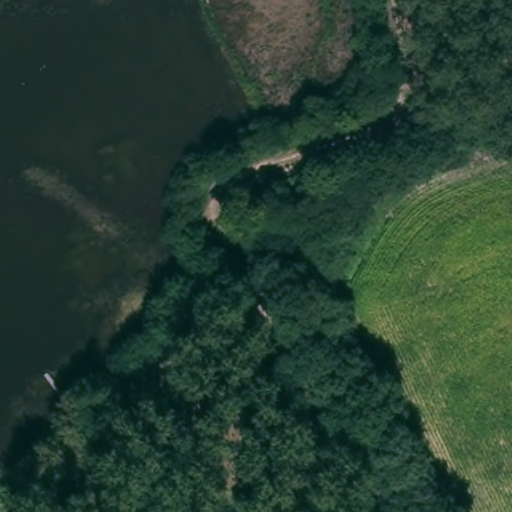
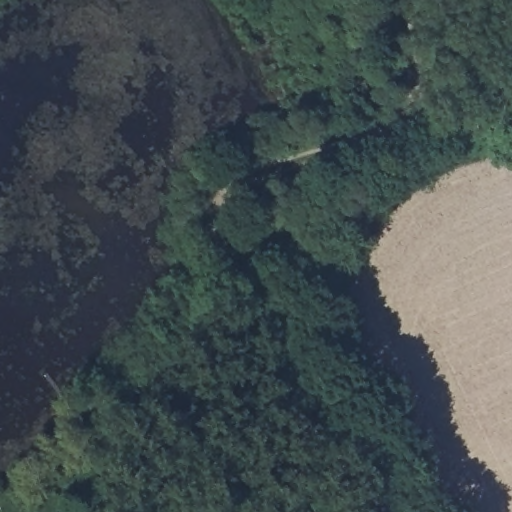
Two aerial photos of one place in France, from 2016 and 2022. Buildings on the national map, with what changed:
[]

